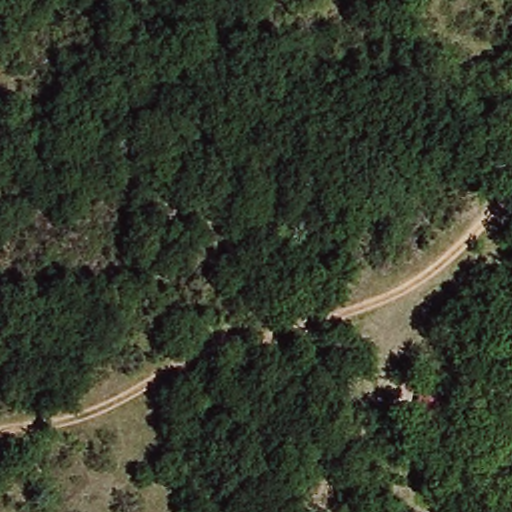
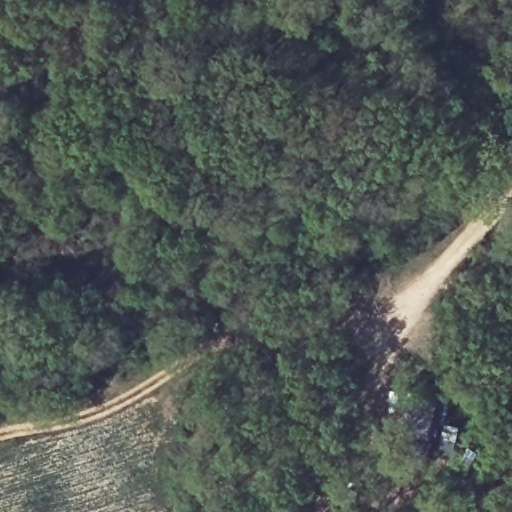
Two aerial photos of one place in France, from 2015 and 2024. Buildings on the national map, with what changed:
unchanged [(446,437),(438,436),(435,451),(417,446),(425,411),(442,414),(442,424),(448,426),(446,437)]

